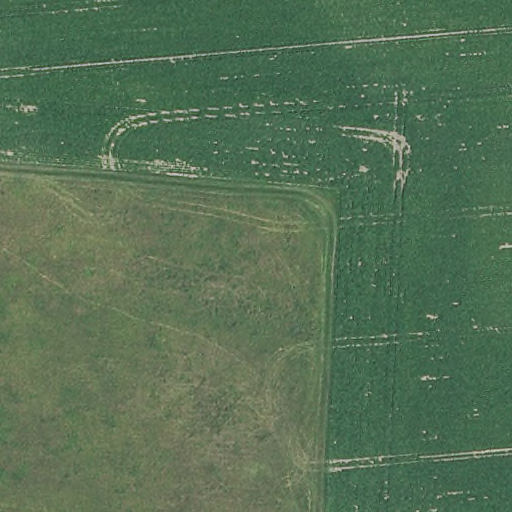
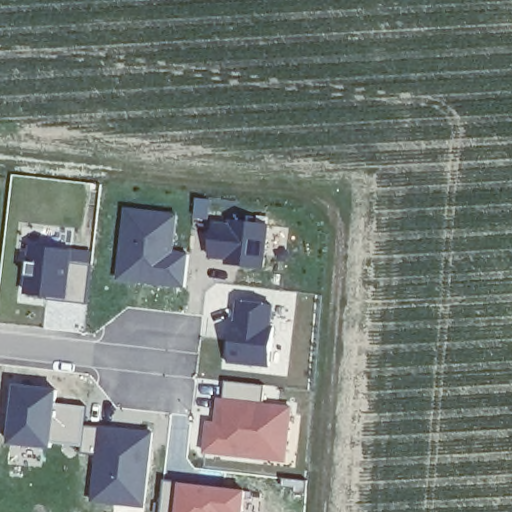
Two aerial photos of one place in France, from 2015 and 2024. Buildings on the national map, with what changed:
new [(179,215),(175,253),(192,256),(188,292),(130,287),(133,244),(122,243),(126,211),(179,215)]
new [(239,227),(240,219),(269,222),(265,270),(202,265),(207,225),(239,227)]
new [(92,264),(87,304),(47,300),(47,297),(28,295),(34,247),(72,251),(71,262),(92,264)]
new [(271,302),(269,327),(275,328),(270,368),(222,363),(227,328),(232,327),(235,299),(271,302)]
new [(265,386),(262,403),(292,408),(286,464),(200,455),(204,421),(212,423),(215,397),(221,398),(222,381),(265,386)]
new [(52,441),(52,446),(10,442),(16,387),(59,393),(57,404),(87,407),(85,427),(80,427),(79,440),(79,443),(52,441)]
new [(80,427),(152,432),(146,506),(91,502),(95,454),(79,452),(79,440),(80,427)]
new [(167,480),(228,486),(227,492),(245,494),(243,512),(162,512),(167,480)]

